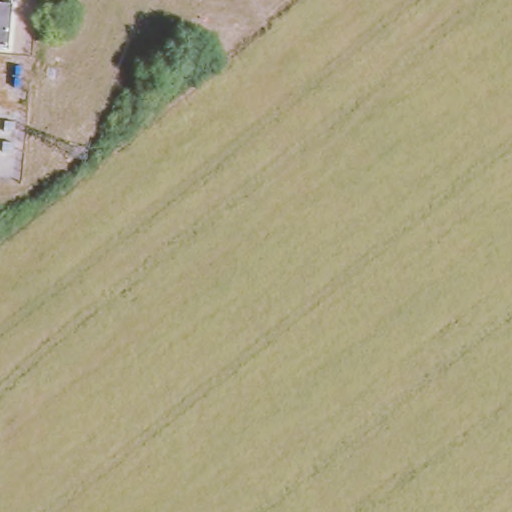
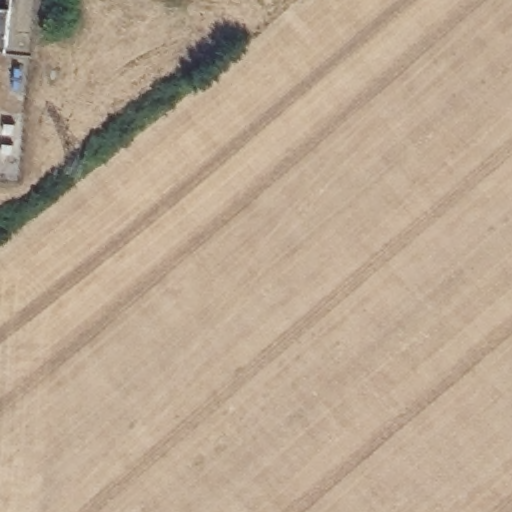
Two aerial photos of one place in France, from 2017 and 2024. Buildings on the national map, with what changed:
unchanged [(3,52),(0,52),(0,0),(7,0),(5,11),(3,52)]

